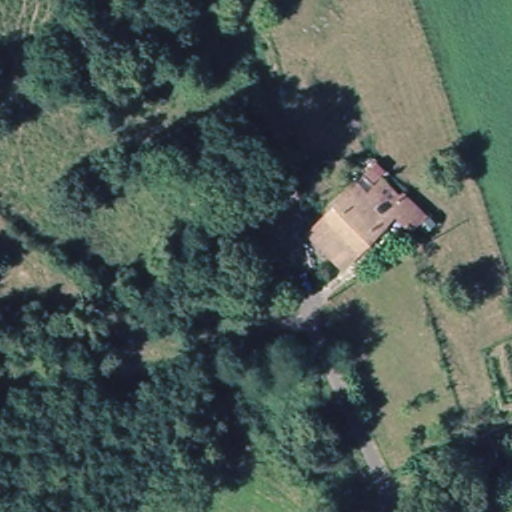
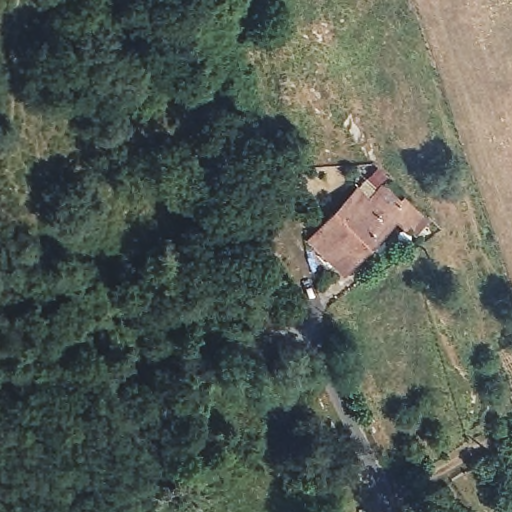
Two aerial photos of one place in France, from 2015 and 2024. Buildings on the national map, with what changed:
unchanged [(363,181),(373,192),(388,179),(431,215),(413,234),(403,224),(348,281),(308,235),(363,181)]

